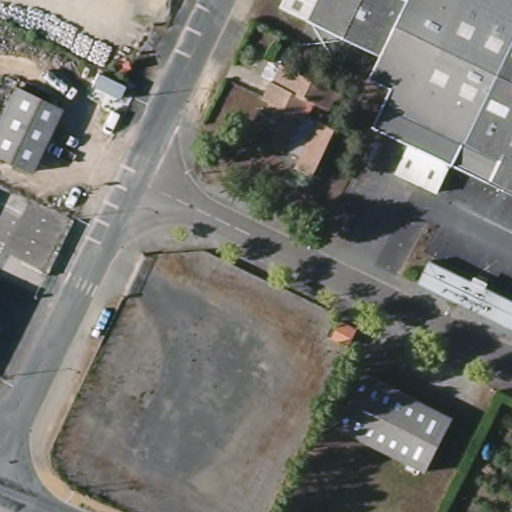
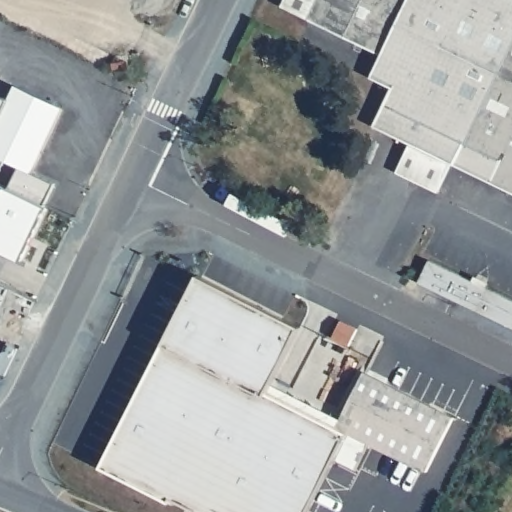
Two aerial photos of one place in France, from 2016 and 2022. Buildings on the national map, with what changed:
unchanged [(310,18),(282,5),(284,0),(319,0),(310,18)]
unchanged [(454,164),(414,144),(375,124),(392,89),(370,78),(381,56),(348,40),(338,55),(307,43),(315,25),(315,23),(309,20),(310,18),(319,0),(512,0),(512,193),(454,164)]
unchanged [(299,51),(294,60),(286,57),(291,47),(299,51)]
unchanged [(250,128),(260,107),(265,109),(270,96),(264,93),(264,92),(271,76),(261,70),(270,53),(339,86),(326,111),(323,117),(343,127),(320,173),(296,162),(299,153),(285,146),(250,128)]
unchanged [(31,173),(0,158),(0,118),(15,87),(62,109),(31,173)]
new [(0,118),(0,96),(9,100),(0,118)]
unchanged [(454,164),(441,190),(400,170),(414,144),(454,164)]
new [(0,167),(0,158),(4,159),(0,167)]
unchanged [(512,295),(512,322),(485,309),(425,280),(436,258),(512,295)]
new [(198,275),(300,327),(273,380),(341,421),(338,426),(370,442),(356,468),(336,457),(307,512),(199,512),(172,498),(170,501),(101,467),(164,343),(198,275)]
unchanged [(341,321),(357,329),(349,346),(332,339),(341,321)]
unchanged [(454,417),(427,471),(338,426),(365,373),(454,417)]

